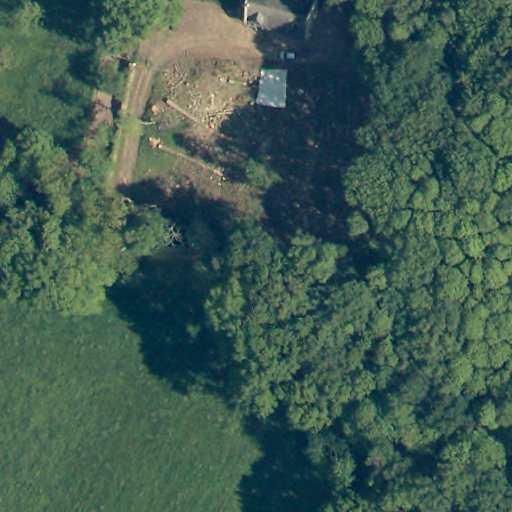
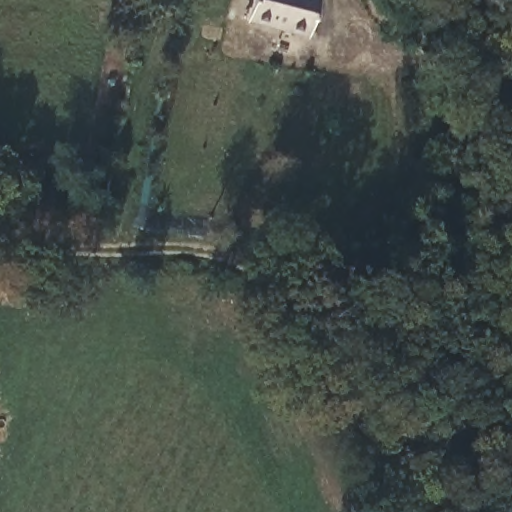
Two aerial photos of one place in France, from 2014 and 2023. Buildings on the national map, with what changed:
unchanged [(265,0),(330,0),(316,40),(258,22),(265,0)]

